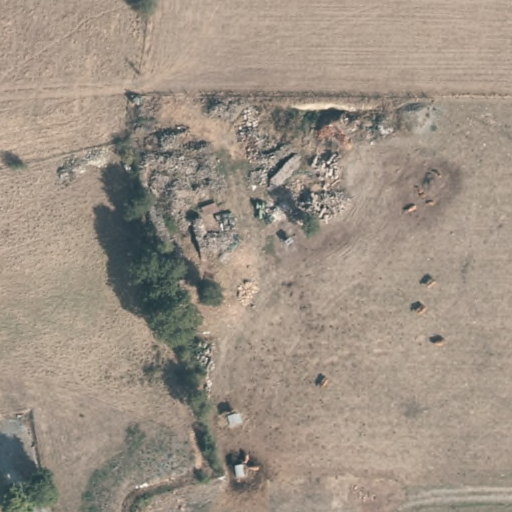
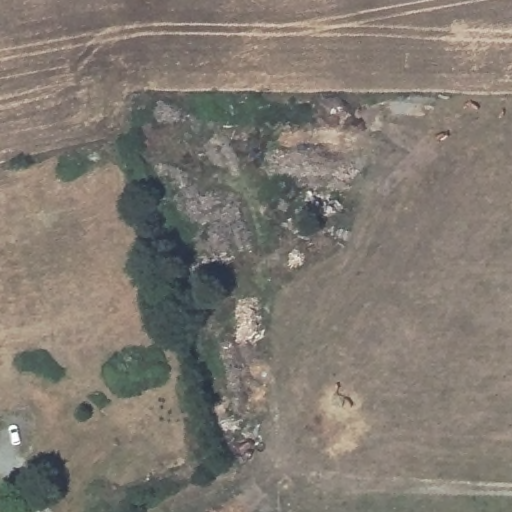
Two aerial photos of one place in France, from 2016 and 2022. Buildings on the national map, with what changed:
[]

